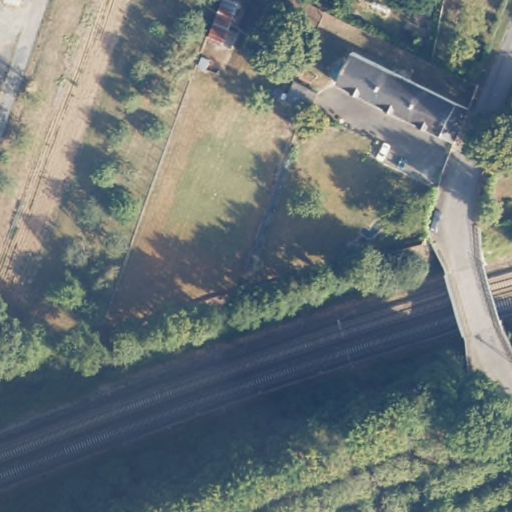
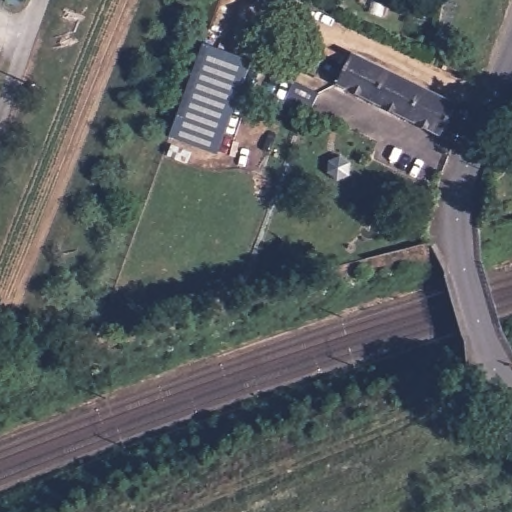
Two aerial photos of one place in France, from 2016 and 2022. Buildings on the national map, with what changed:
demolished [(205,51),(225,0),(242,0),(243,1),(224,57),(205,51)]
new [(171,136),(204,44),(250,60),(218,153),(171,136)]
unchanged [(461,107),(446,139),(334,82),(349,52),(461,107)]
unchanged [(321,92),(310,111),(287,99),(296,81),(321,92)]

